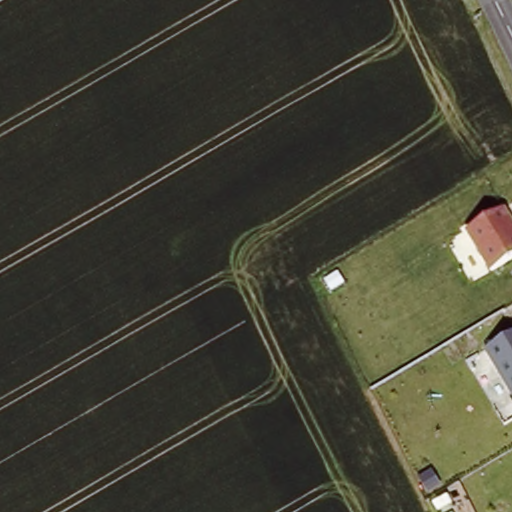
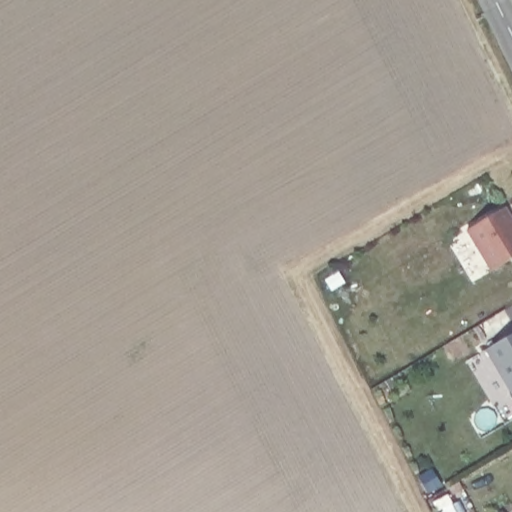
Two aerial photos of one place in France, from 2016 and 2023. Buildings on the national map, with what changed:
unchanged [(503,205),(512,220),(512,257),(489,272),(464,231),(503,205)]
unchanged [(512,333),(512,398),(481,352),(512,333)]

